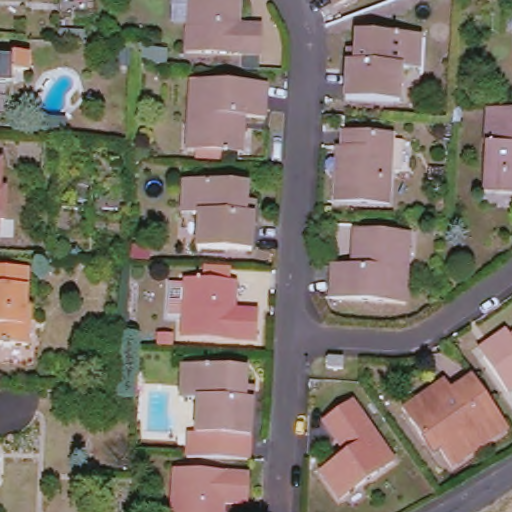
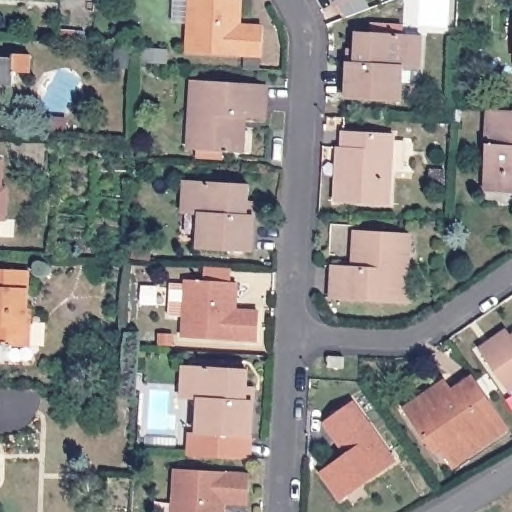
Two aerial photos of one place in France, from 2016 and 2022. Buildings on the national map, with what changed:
unchanged [(336,0),(360,0),(342,10),(336,0)]
unchanged [(234,31),(261,33),(260,61),(186,58),(190,1),(236,5),(234,31)]
unchanged [(506,62),(509,18),(512,18),(512,62),(506,62)]
unchanged [(347,103),(348,69),(355,69),(357,38),(411,42),(423,42),(421,75),(409,74),(404,73),(401,106),(347,103)]
unchanged [(13,55),(30,56),(30,72),(15,71),(13,84),(0,83),(0,58),(12,59),(13,55)]
unchanged [(190,117),(192,82),(267,87),(265,118),(245,117),(242,151),(195,149),(187,148),(190,117)]
unchanged [(488,194),(494,114),(512,115),(512,195),(488,194)]
unchanged [(390,205),(335,202),(337,172),(342,172),(344,132),(394,135),(390,205)]
unchanged [(7,194),(5,225),(0,225),(0,165),(3,166),(2,194),(7,194)]
unchanged [(255,216),(254,251),(199,248),(199,215),(189,214),(182,214),(185,181),(191,182),(249,185),(247,215),(255,216)]
unchanged [(334,272),(354,273),(356,237),(402,240),(412,240),(410,271),(407,308),(332,304),(334,272)]
unchanged [(31,310),(30,347),(0,345),(0,269),(29,271),(28,310),(31,310)]
unchanged [(267,317),(266,346),(192,342),(193,322),(179,321),(180,289),(195,289),(195,286),(242,289),(240,316),(267,317)]
unchanged [(510,393),(485,357),(480,350),(509,331),(512,337),(512,391),(510,393)]
unchanged [(343,368),(330,368),(330,357),(344,358),(343,368)]
unchanged [(247,401),(254,402),(250,461),(196,458),(198,400),(192,399),(181,398),(184,366),(195,367),(248,370),(247,401)]
unchanged [(452,466),(440,450),(434,454),(404,408),(445,379),(453,389),(473,375),(510,428),(452,466)]
unchanged [(346,500),(327,473),(353,454),(331,423),(360,403),(400,462),(346,500)]
unchanged [(224,507),(224,512),(177,512),(180,475),(253,480),(251,508),(224,507)]

